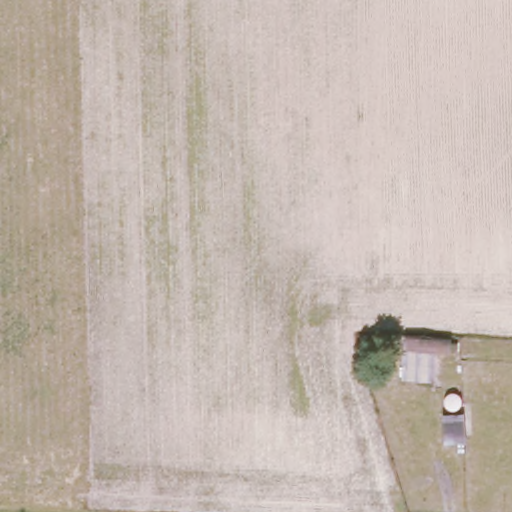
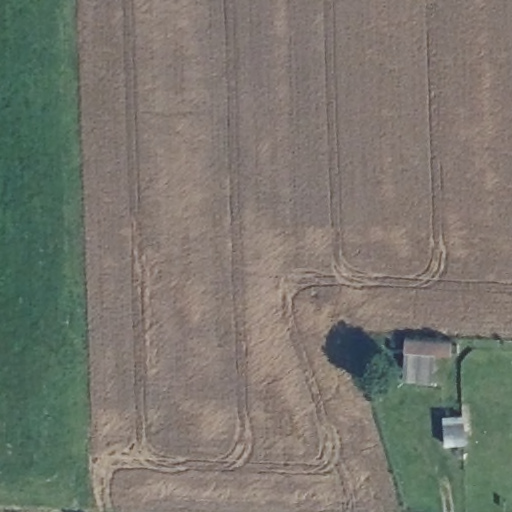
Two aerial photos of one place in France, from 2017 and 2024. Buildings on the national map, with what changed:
unchanged [(403,348),(403,332),(450,334),(450,351),(403,348)]
unchanged [(462,438),(444,437),(443,408),(462,409),(462,438)]

